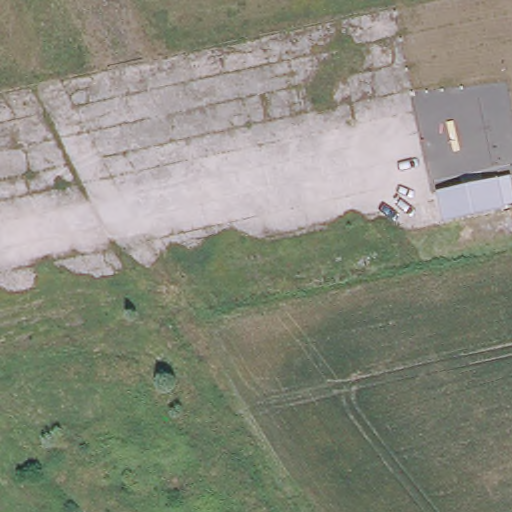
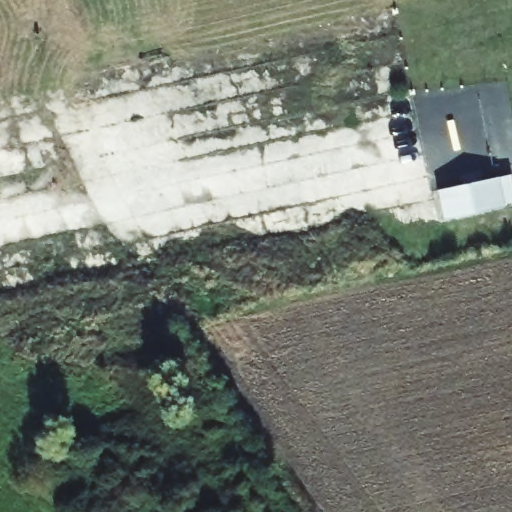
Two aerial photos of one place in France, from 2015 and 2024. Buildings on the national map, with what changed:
unchanged [(512,185),(512,203),(504,204),(504,207),(444,220),(437,190),(497,177),(510,175),(512,185)]

